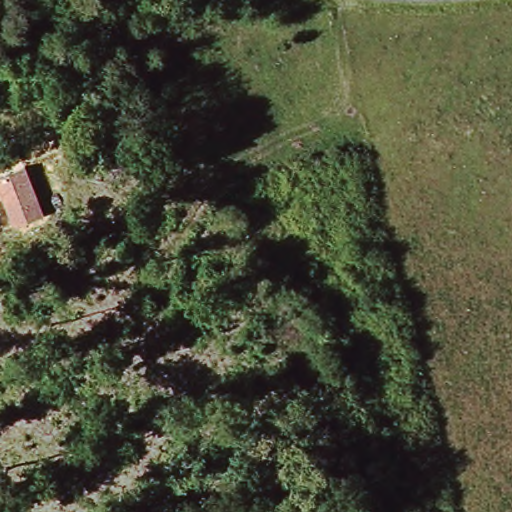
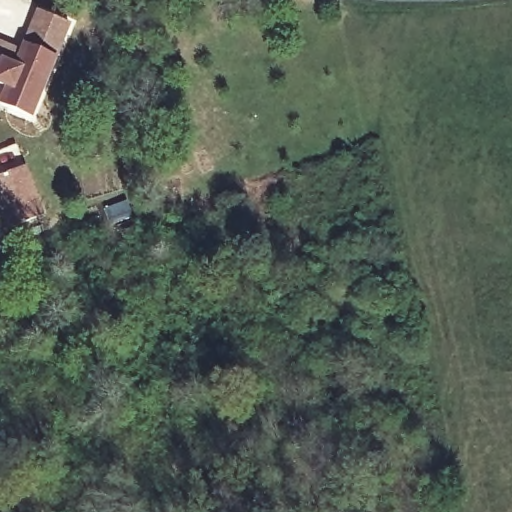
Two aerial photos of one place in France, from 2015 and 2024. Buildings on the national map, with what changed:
new [(13,61),(19,45),(35,8),(71,23),(33,117),(0,104),(0,93),(2,86),(0,85),(0,56),(13,61)]
new [(19,45),(13,61),(0,56),(0,39),(19,45)]
unchanged [(45,213),(15,225),(0,185),(0,173),(27,164),(45,213)]

